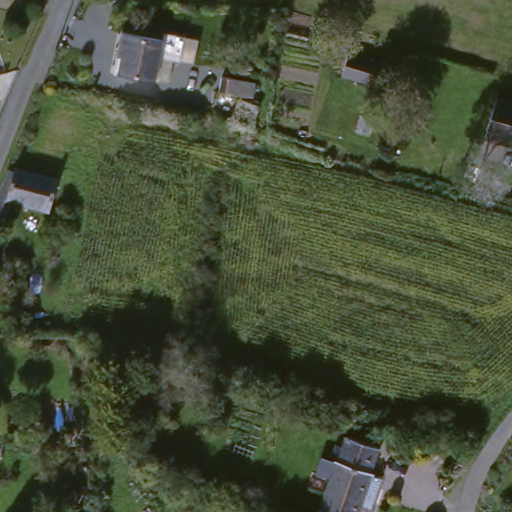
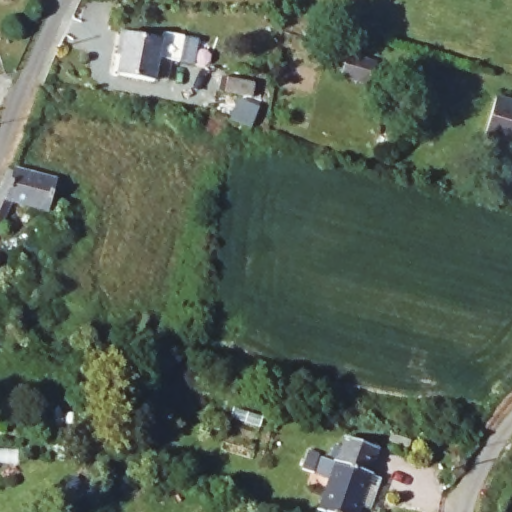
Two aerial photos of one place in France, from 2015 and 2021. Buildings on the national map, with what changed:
unchanged [(119,70),(122,52),(117,51),(121,29),(162,36),(164,26),(185,30),(180,57),(159,54),(155,76),(119,70)]
unchanged [(351,51),(328,45),(331,34),(355,41),(351,51)]
unchanged [(347,76),(354,55),(382,64),(376,85),(347,76)]
unchanged [(253,82),(250,97),(218,92),(220,77),(253,82)]
unchanged [(512,140),(490,134),(502,94),(512,96),(512,140)]
unchanged [(260,107),(252,127),(231,120),(239,100),(260,107)]
unchanged [(67,181),(59,212),(21,203),(11,224),(0,220),(0,211),(19,170),(24,172),(25,170),(67,181)]
unchanged [(10,251),(5,272),(0,271),(0,249),(10,251)]
unchanged [(136,391),(139,375),(165,377),(164,394),(136,391)]
unchanged [(366,503),(363,512),(339,512),(324,507),(341,457),(343,458),(343,456),(336,454),(341,442),(348,444),(351,433),(383,445),(375,469),(377,470),(377,472),(386,475),(375,506),(366,503)]

